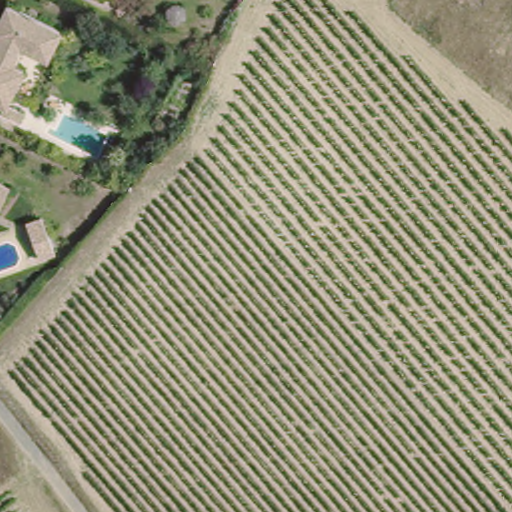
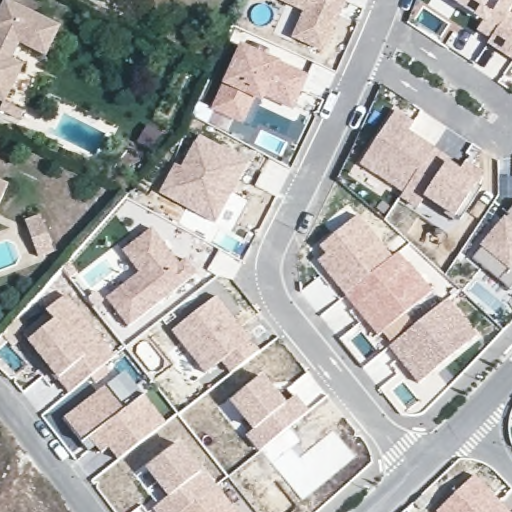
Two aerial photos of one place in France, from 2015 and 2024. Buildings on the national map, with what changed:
new [(322,51),(292,37),(303,12),(277,0),(347,0),(322,51)]
new [(491,39),(480,31),(483,23),(455,4),(450,0),(512,0),(512,8),(509,12),(512,15),(512,60),(488,44),(491,39)]
unchanged [(12,66),(22,70),(4,106),(0,105),(0,14),(5,5),(57,29),(43,57),(21,45),(12,66)]
new [(307,77),(292,107),(265,95),(263,100),(245,93),(233,117),(215,109),(242,49),(307,77)]
new [(415,124),(410,131),(450,159),(448,162),(458,170),(465,162),(482,175),(475,184),(452,219),(425,200),(417,210),(401,199),(403,194),(360,165),(396,111),(415,124)]
new [(238,171),(230,167),(223,180),(231,185),(213,218),(157,189),(172,160),(178,164),(195,131),(245,157),(238,171)]
unchanged [(7,170),(2,200),(0,199),(0,169),(7,170)]
new [(310,254),(318,247),(312,240),(350,209),(385,251),(338,288),(310,254)]
new [(475,259),(483,249),(480,246),(505,219),(512,210),(512,289),(510,290),(475,259)]
new [(103,291),(136,267),(120,245),(150,223),(176,260),(182,255),(193,270),(125,320),(103,291)]
new [(337,289),(390,247),(400,259),(401,258),(425,286),(370,330),(352,307),(348,302),(337,289)]
new [(69,388),(21,330),(46,310),(43,307),(62,291),(112,352),(69,388)]
new [(228,368),(219,356),(203,368),(170,325),(214,291),(243,328),(240,330),(244,335),(247,333),(257,345),(228,368)]
new [(381,340),(440,293),(469,330),(411,377),(395,358),(392,353),(381,340)]
new [(258,445),(245,428),(252,423),(229,395),(259,370),(282,398),(292,390),(305,406),(258,445)]
new [(96,451),(90,442),(95,438),(90,432),(77,442),(57,416),(101,382),(114,373),(138,392),(160,421),(113,458),(102,445),(96,451)]
new [(355,460),(303,502),(258,445),(285,423),(300,442),(292,449),(300,460),(335,435),(355,460)]
new [(90,432),(95,438),(82,448),(77,442),(90,432)]
new [(168,490),(145,462),(176,438),(198,466),(200,465),(213,481),(174,512),(161,512),(153,502),(168,490)]
new [(467,471),(485,490),(507,512),(434,512),(430,507),(467,471)]
new [(174,512),(215,480),(239,512),(174,512)]

